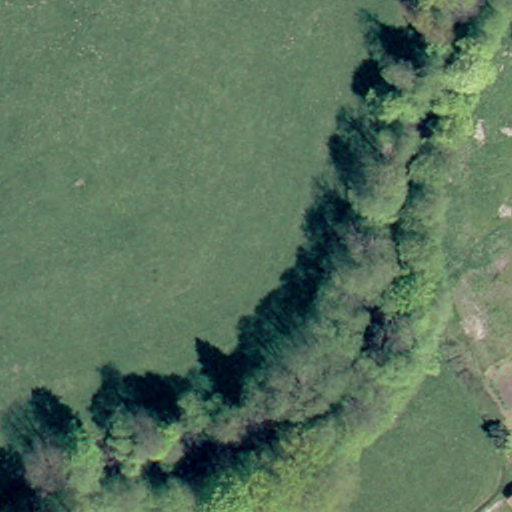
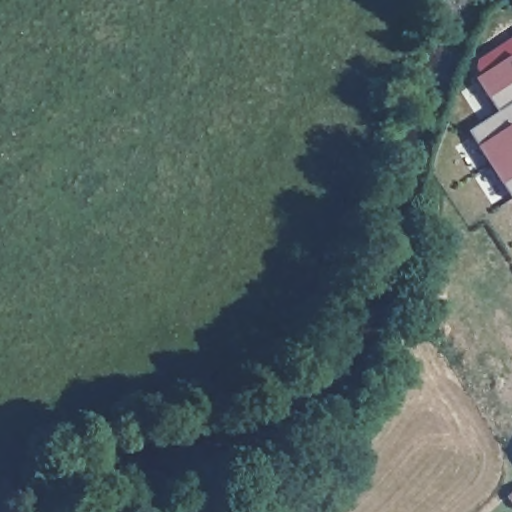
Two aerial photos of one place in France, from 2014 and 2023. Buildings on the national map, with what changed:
new [(485,99),(473,81),(509,57),(512,55),(512,102),(495,113),(485,99)]
new [(475,146),(466,132),(495,113),(512,102),(512,149),(487,165),(475,146)]
new [(508,199),(500,186),(487,165),(512,149),(512,197),(508,199)]
new [(506,497),(512,492),(512,503),(506,497)]

